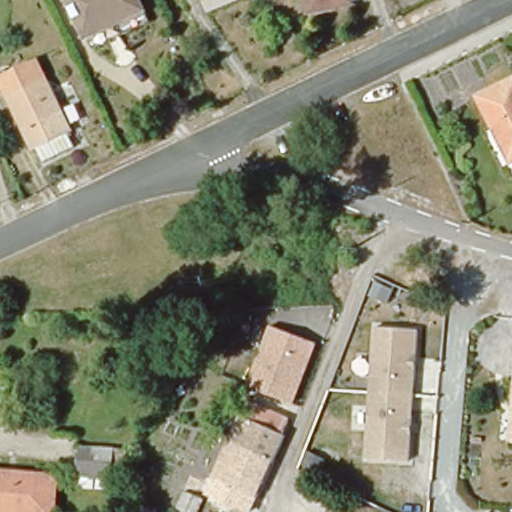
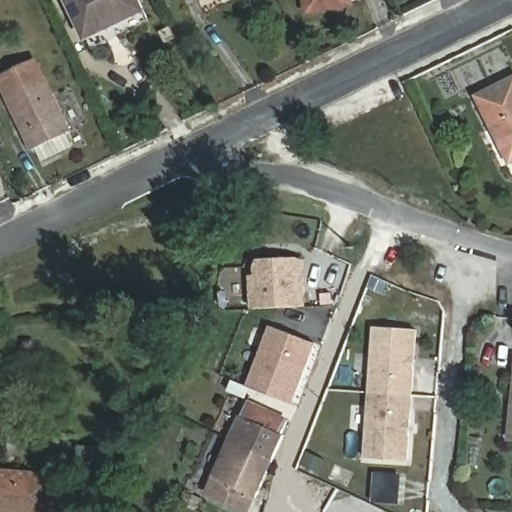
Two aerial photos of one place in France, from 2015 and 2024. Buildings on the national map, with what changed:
unchanged [(69,0),(138,0),(144,11),(87,38),(69,0)]
unchanged [(306,0),(349,0),(351,8),(309,16),(306,0)]
unchanged [(0,80),(0,78),(36,60),(71,132),(67,134),(74,147),(42,162),(36,149),(34,150),(0,80)]
unchanged [(474,97),(512,78),(512,80),(512,160),(506,162),(474,97)]
new [(306,307),(252,308),(250,275),(255,273),(254,262),(257,259),(305,258),(306,307)]
unchanged [(248,385),(270,325),(317,342),(294,402),(248,385)]
unchanged [(365,459),(373,327),(419,329),(410,461),(365,459)]
unchanged [(258,454),(230,441),(247,404),(286,422),(281,434),(285,436),(272,461),(258,454)]
unchanged [(512,428),(512,439),(511,439),(512,428)]
unchanged [(207,490),(230,441),(258,454),(272,461),(251,510),(207,490)]
unchanged [(83,447),(117,450),(116,477),(81,475),(83,447)]
unchanged [(56,478),(53,512),(0,512),(0,474),(56,478)]
new [(374,474),(402,475),(400,505),(372,503),(374,474)]
unchanged [(189,491),(186,490),(192,476),(205,482),(200,495),(202,497),(196,512),(179,512),(182,506),(189,491)]

